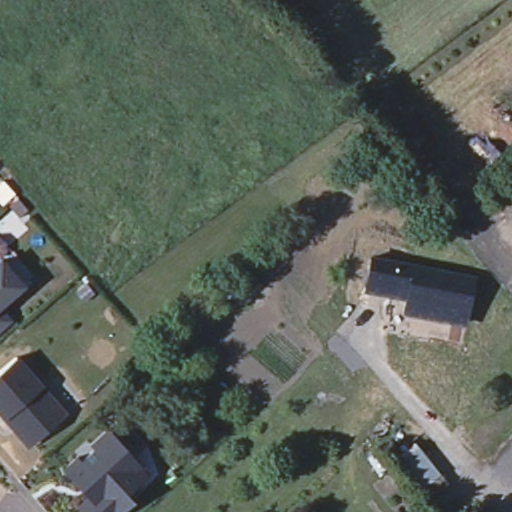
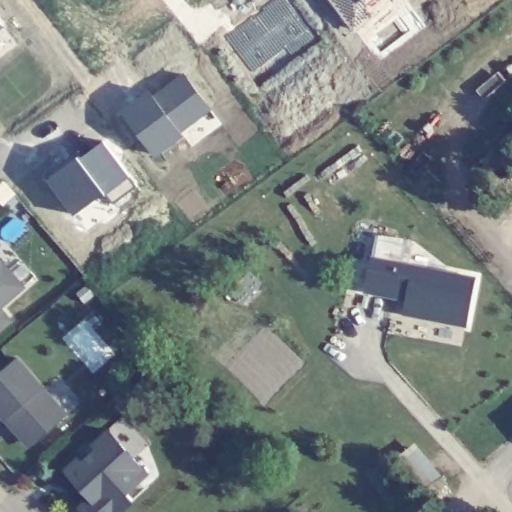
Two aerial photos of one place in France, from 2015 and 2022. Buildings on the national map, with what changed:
new [(283,0),(309,28),(253,72),(225,39),(272,0),(283,0)]
new [(372,16),(350,31),(328,0),(374,0),(364,8),(372,16)]
new [(0,32),(0,27),(2,30),(0,32)]
new [(150,93),(152,97),(185,75),(210,111),(179,135),(183,138),(152,158),(122,115),(150,93)]
new [(103,145),(136,187),(114,207),(104,194),(72,216),(45,179),(103,145)]
unchanged [(477,275),(469,326),(403,315),(405,299),(363,292),(370,254),(477,275)]
unchanged [(24,285),(0,306),(0,261),(2,259),(24,285)]
unchanged [(241,301),(230,291),(249,270),(260,280),(241,301)]
unchanged [(0,329),(0,308),(10,320),(0,329)]
unchanged [(0,371),(17,356),(67,414),(35,442),(26,441),(17,431),(6,418),(0,411),(0,371)]
unchanged [(77,461),(74,457),(88,443),(92,448),(107,433),(122,420),(148,449),(134,462),(147,477),(127,496),(134,503),(125,512),(80,512),(79,510),(90,500),(82,492),(65,473),(77,461)]

